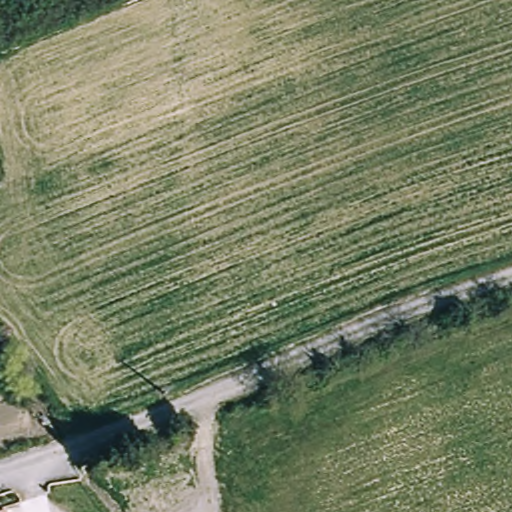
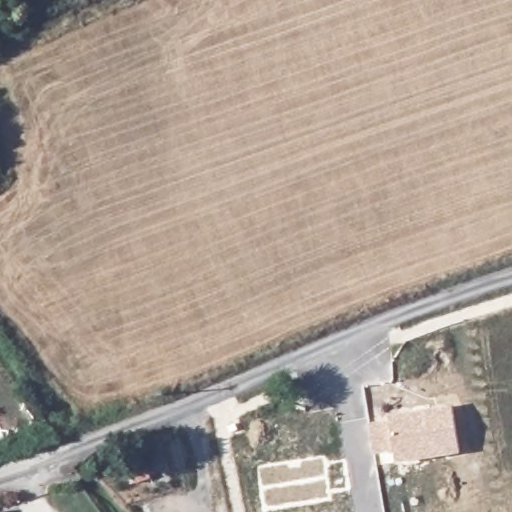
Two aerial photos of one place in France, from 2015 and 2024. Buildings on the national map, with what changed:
new [(396,463),(394,450),(374,453),(370,423),(389,420),(388,415),(452,405),(460,453),(396,463)]

